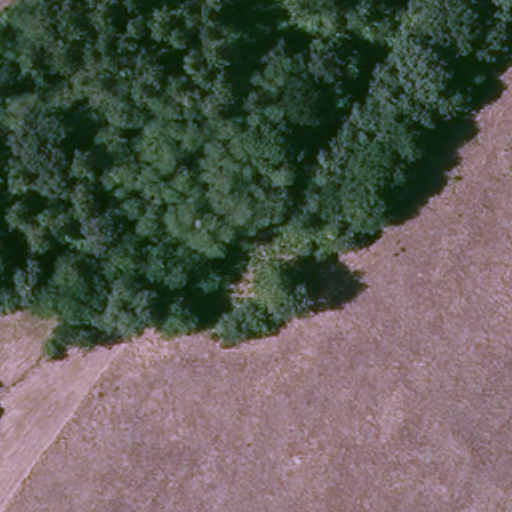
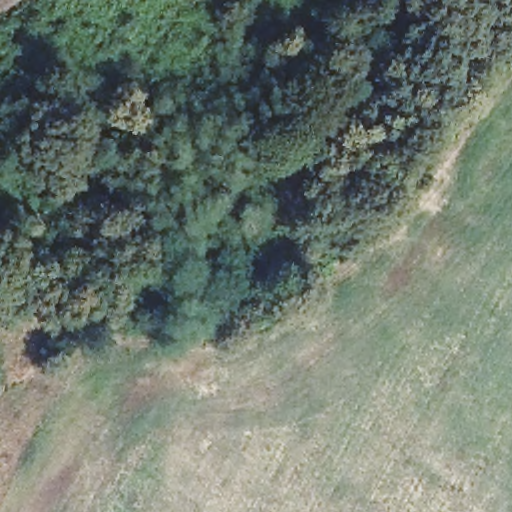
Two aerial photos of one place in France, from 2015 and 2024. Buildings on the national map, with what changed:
[]

